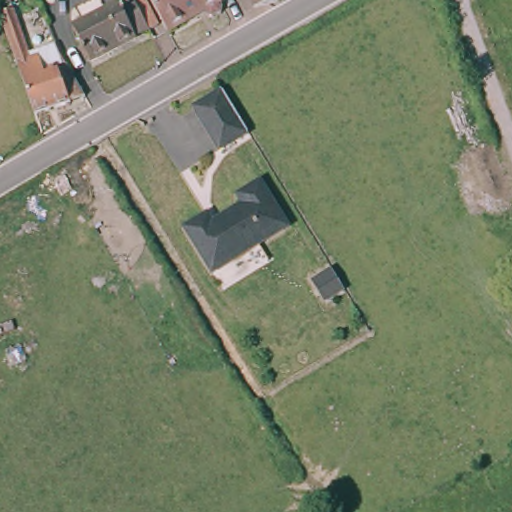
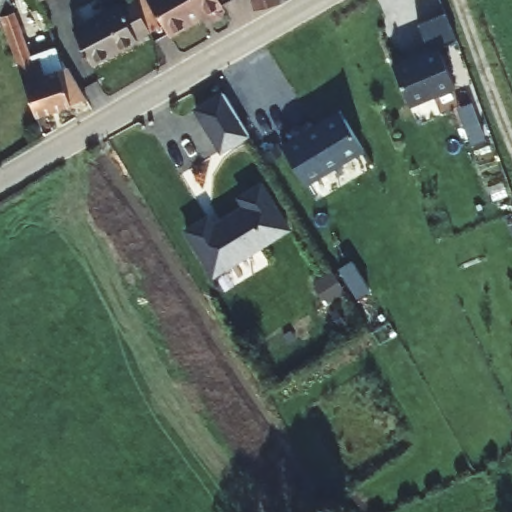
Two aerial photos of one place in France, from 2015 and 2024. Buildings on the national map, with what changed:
unchanged [(149,30),(89,61),(71,29),(126,0),(134,0),(149,30)]
unchanged [(216,9),(218,14),(217,20),(207,25),(201,22),(198,18),(163,39),(141,0),(230,0),(216,9)]
unchanged [(276,5),(253,9),(251,0),(275,0),(276,5)]
new [(457,40),(439,47),(455,86),(409,105),(393,65),(429,50),(418,24),(446,12),(457,40)]
unchanged [(69,106),(70,108),(36,120),(0,22),(0,20),(12,15),(30,63),(38,60),(44,77),(66,70),(84,100),(69,106)]
unchanged [(238,139),(211,155),(185,115),(213,97),(238,139)]
new [(339,110),(363,149),(305,184),(281,146),(339,110)]
unchanged [(203,215),(208,224),(240,204),(234,195),(256,182),(283,226),(208,272),(181,229),(203,215)]

